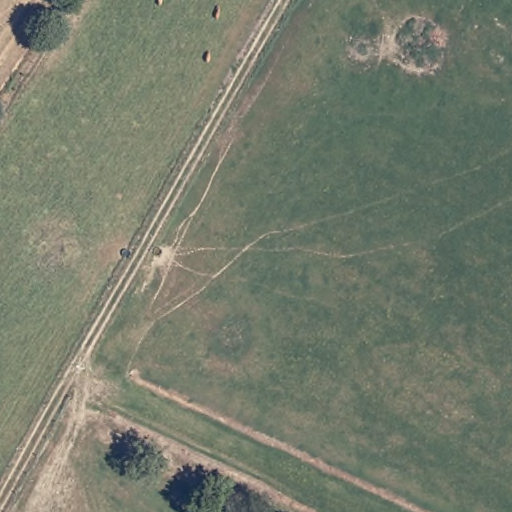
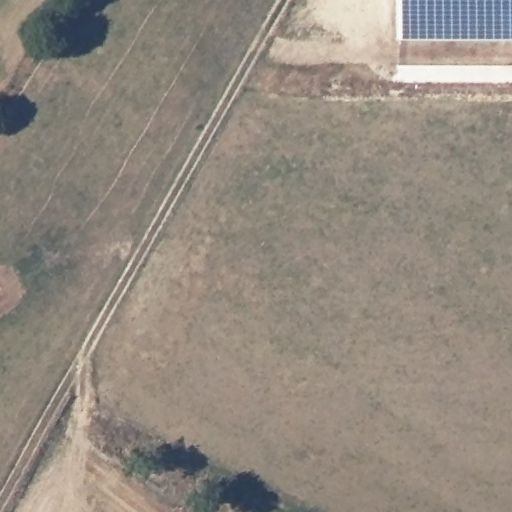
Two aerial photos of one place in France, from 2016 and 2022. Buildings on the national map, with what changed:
new [(396,0),(512,0),(512,41),(397,41),(396,0)]

